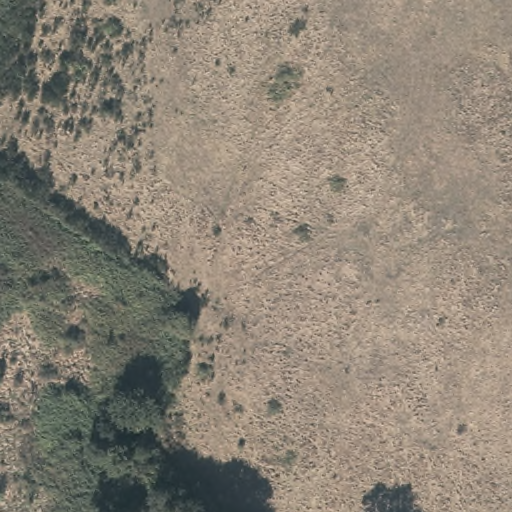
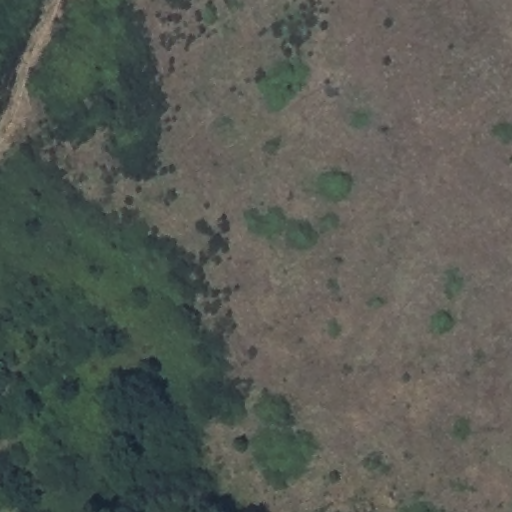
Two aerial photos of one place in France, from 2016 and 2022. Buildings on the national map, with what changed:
[]

